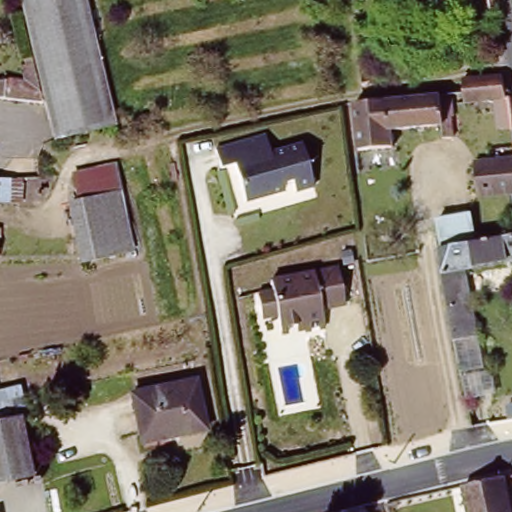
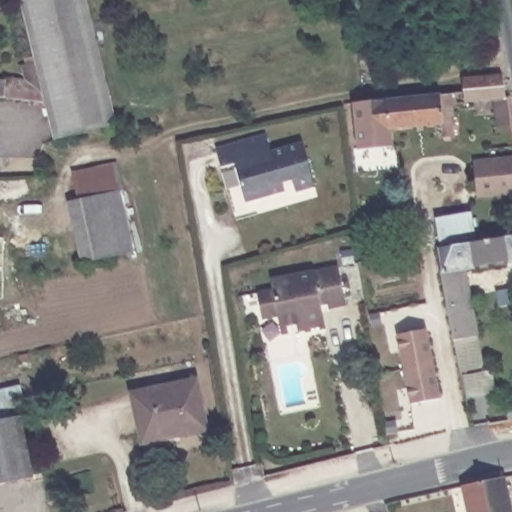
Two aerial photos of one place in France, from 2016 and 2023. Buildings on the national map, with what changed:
unchanged [(87,0),(118,128),(60,143),(51,110),(24,0),(87,0)]
unchanged [(26,88),(23,76),(30,73),(27,66),(35,65),(45,110),(5,105),(8,86),(26,88)]
unchanged [(501,80),(504,100),(507,100),(512,124),(512,132),(498,133),(492,104),(466,106),(461,84),(501,80)]
unchanged [(448,114),(452,114),(453,126),(446,126),(447,135),(436,136),(435,124),(386,130),(387,146),(355,149),(350,104),(446,94),(448,114)]
unchanged [(297,193),(294,181),(282,184),(284,191),(247,200),(237,165),(225,169),(220,150),(268,136),(273,153),(303,145),(316,188),(297,193)]
unchanged [(478,202),(475,169),(512,164),(512,197),(478,202)]
unchanged [(70,206),(80,204),(73,177),(115,168),(121,195),(135,254),(93,263),(82,265),(70,206)]
unchanged [(435,225),(470,218),(476,246),(439,253),(435,225)]
unchanged [(466,272),(470,292),(445,296),(440,276),(443,276),(439,253),(476,246),(512,239),(512,264),(466,272)]
unchanged [(303,288),(338,282),(345,318),(330,320),(329,315),(321,316),(325,339),(314,341),(303,288)]
unchanged [(303,343),(302,336),(281,339),(280,328),(263,330),(260,305),(276,302),(275,292),(303,288),(314,341),(303,343)]
unchanged [(480,339),(453,344),(445,296),(470,292),(471,296),(480,339)]
new [(412,404),(399,335),(428,329),(442,399),(412,404)]
unchanged [(205,429),(173,436),(171,431),(145,436),(135,393),(192,380),(205,429)]
unchanged [(31,478),(0,483),(0,422),(21,420),(31,478)]
unchanged [(463,494),(502,485),(507,512),(467,512),(463,494)]

